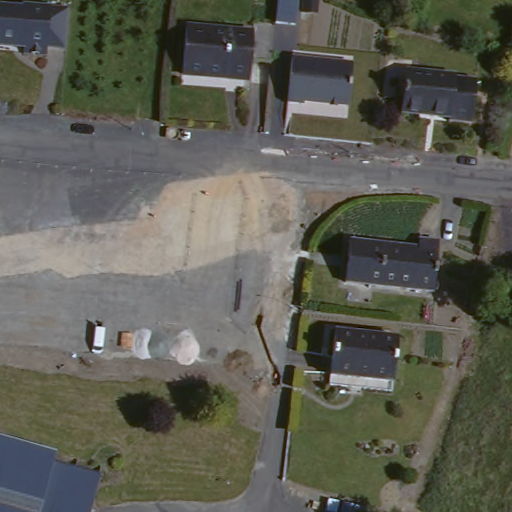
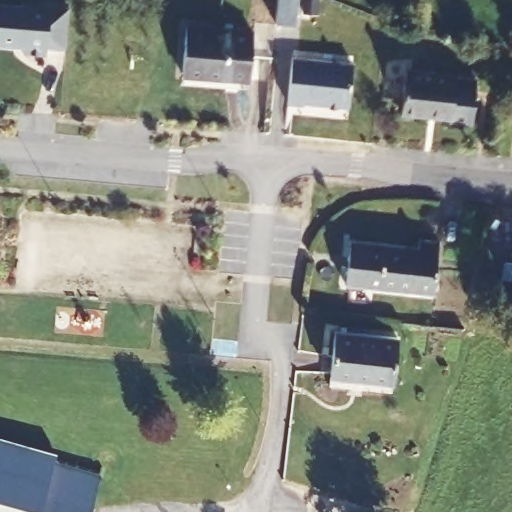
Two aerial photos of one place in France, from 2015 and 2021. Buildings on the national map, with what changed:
unchanged [(254,23),(256,0),(276,0),(274,25),(254,23)]
unchanged [(66,49),(47,47),(46,56),(23,54),(24,46),(0,43),(0,4),(23,6),(23,4),(69,8),(66,49)]
unchanged [(233,33),(233,22),(254,25),(251,62),(231,61),(229,81),(162,75),(166,27),(233,33)]
unchanged [(352,103),(308,97),(308,100),(293,99),(296,54),(356,60),(352,103)]
unchanged [(476,80),(471,125),(449,122),(449,118),(401,112),(406,72),(476,80)]
unchanged [(418,243),(419,234),(438,237),(433,287),(344,278),(349,236),(418,243)]
unchanged [(398,337),(393,382),(330,376),(335,331),(398,337)]
unchanged [(0,432),(59,448),(56,460),(103,473),(93,512),(0,512),(0,432)]

